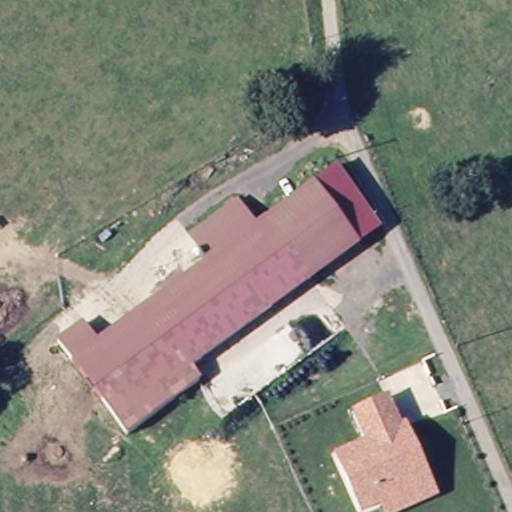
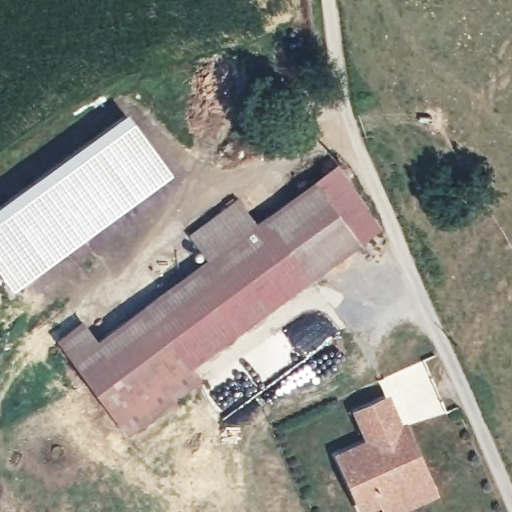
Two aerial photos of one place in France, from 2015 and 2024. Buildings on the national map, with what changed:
new [(126,113),(172,175),(66,253),(11,290),(0,274),(0,203),(18,190),(126,113)]
unchanged [(269,215),(318,179),(363,240),(314,275),(269,215)]
unchanged [(71,356),(205,260),(187,234),(237,199),(256,224),(269,215),(314,275),(190,368),(119,420),(71,356)]
unchanged [(119,420),(190,368),(201,382),(129,435),(119,420)]
unchanged [(393,512),(387,498),(368,507),(344,453),(375,439),(362,408),(392,394),(406,425),(407,424),(432,478),(438,492),(393,512)]

